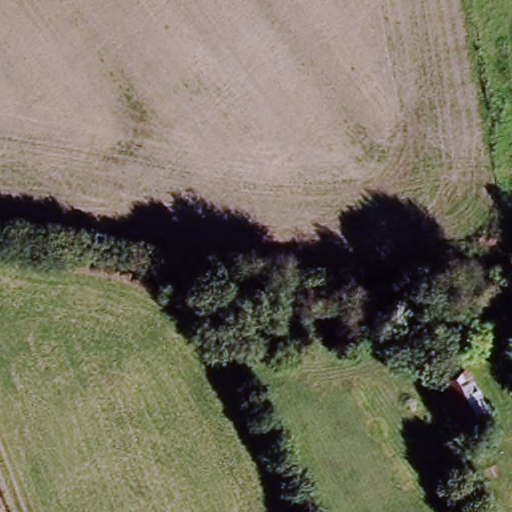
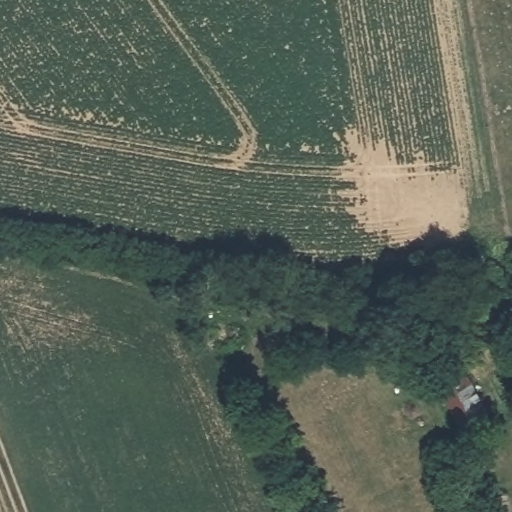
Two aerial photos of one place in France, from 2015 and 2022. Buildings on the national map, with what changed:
unchanged [(492,419),(462,434),(435,382),(465,367),(492,419)]

